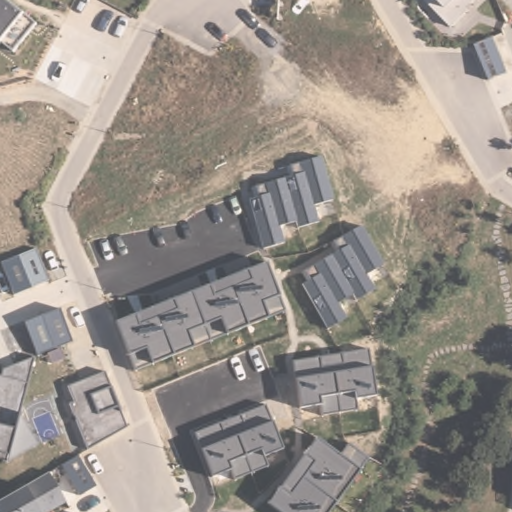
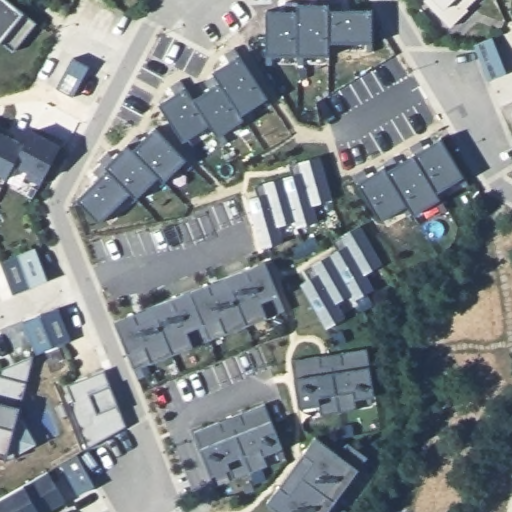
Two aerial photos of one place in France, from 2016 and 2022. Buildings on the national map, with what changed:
unchanged [(2,38),(0,41),(0,0),(8,0),(22,11),(36,22),(15,49),(2,38)]
unchanged [(467,8),(470,12),(452,26),(425,0),(474,0),(467,8)]
new [(329,41),(328,55),(267,55),(266,11),(298,12),(298,3),(330,3),(329,10),(372,10),(372,42),(329,41)]
new [(492,37),(507,73),(489,80),(475,45),(492,37)]
new [(217,135),(210,122),(184,141),(159,104),(186,87),(194,101),(221,84),(243,118),(217,135)]
new [(166,180),(159,173),(137,196),(132,190),(100,222),(79,199),(110,170),(105,165),(127,143),(132,150),(156,128),(185,159),(166,180)]
unchanged [(5,175),(0,173),(0,131),(23,145),(12,163),(5,175)]
unchanged [(40,185),(26,177),(29,172),(12,163),(23,145),(30,131),(45,139),(49,132),(67,140),(40,185)]
new [(436,192),(440,198),(413,215),(407,204),(380,220),(357,183),(385,166),(387,171),(441,139),(462,175),(436,192)]
unchanged [(313,206),(317,221),(297,226),(296,219),(277,224),(282,240),(263,246),(249,199),(258,196),(255,187),(265,183),(293,175),(291,166),(300,162),(321,156),(332,197),(313,206)]
unchanged [(366,273),(374,289),(357,300),(351,291),(335,302),(345,316),(326,325),(302,284),(311,278),(306,269),(339,250),(335,239),(362,224),(382,262),(366,273)]
unchanged [(14,292),(1,260),(35,247),(46,279),(14,292)]
unchanged [(283,310),(267,316),(152,361),(135,369),(127,352),(116,321),(267,262),(278,295),(283,310)]
unchanged [(36,352),(25,321),(57,307),(70,339),(36,352)]
unchanged [(371,366),(377,392),(355,397),(357,408),(321,414),(318,402),(299,406),(297,378),(294,360),(367,348),(371,366)]
unchanged [(0,454),(0,375),(2,375),(5,367),(32,358),(26,381),(17,413),(35,443),(6,456),(0,454)]
unchanged [(87,447),(70,402),(75,400),(67,385),(104,371),(125,426),(87,447)]
unchanged [(237,479),(230,467),(212,474),(202,447),(195,431),(266,403),(272,420),(282,447),(265,454),(268,464),(237,479)]
unchanged [(317,436),(337,453),(347,441),(367,456),(356,469),(327,512),(283,512),(267,501),(317,436)]
unchanged [(64,463),(80,454),(97,484),(78,494),(64,463)]
unchanged [(1,512),(0,511),(0,503),(26,488),(49,473),(65,501),(45,512),(1,512)]

